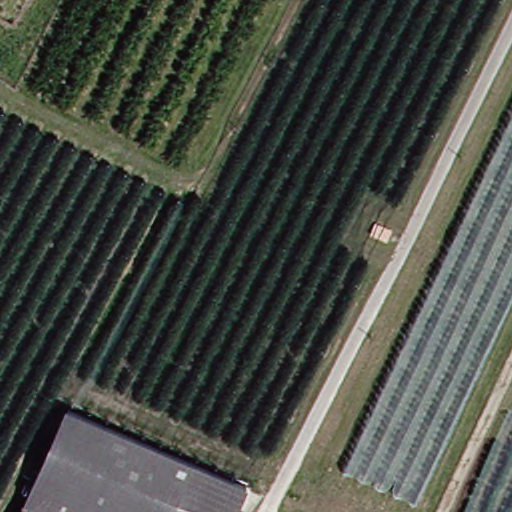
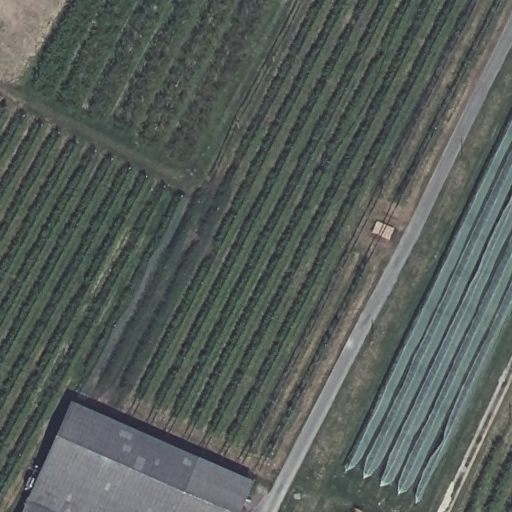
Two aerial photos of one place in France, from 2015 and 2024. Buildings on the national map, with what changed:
unchanged [(83,406),(257,496),(249,512),(27,512),(83,406)]

